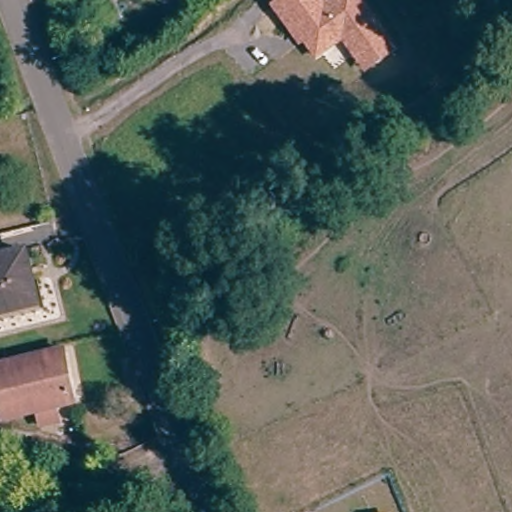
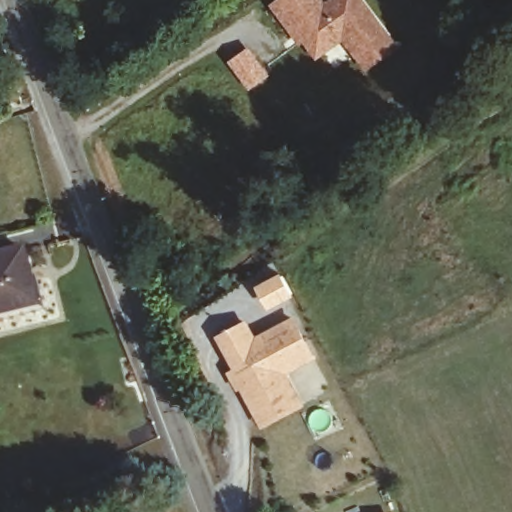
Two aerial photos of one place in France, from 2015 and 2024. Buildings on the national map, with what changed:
unchanged [(327,0),(366,0),(399,50),(363,73),(342,42),(314,60),(302,43),(298,46),(270,5),(276,0),(326,0),(326,1),(327,0)]
unchanged [(43,291),(47,306),(0,318),(0,253),(30,245),(43,291)]
new [(255,428),(249,416),(227,372),(232,370),(215,337),(240,325),(248,342),(287,323),(306,363),(277,377),(287,397),(293,409),(255,428)]
demolished [(58,406),(63,419),(44,425),(40,411),(0,423),(0,365),(62,347),(77,400),(58,406)]

